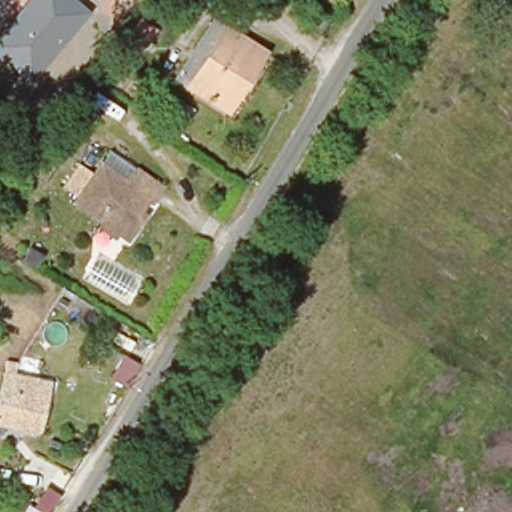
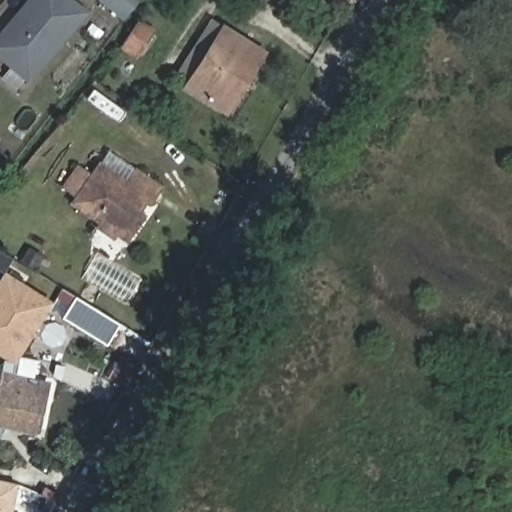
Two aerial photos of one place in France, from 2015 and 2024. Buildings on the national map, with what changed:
unchanged [(31,85),(0,58),(0,32),(28,0),(75,0),(91,12),(31,85)]
new [(137,0),(125,17),(104,2),(106,0),(137,0)]
unchanged [(268,49),(225,119),(188,96),(230,26),(268,49)]
unchanged [(130,186),(143,170),(164,186),(153,202),(149,199),(137,215),(144,220),(129,240),(76,201),(103,165),(130,186)]
new [(0,280),(4,273),(53,302),(14,360),(0,352),(0,280)]
new [(106,346),(61,318),(75,297),(120,324),(106,346)]
unchanged [(15,430),(27,382),(5,377),(4,362),(16,362),(15,373),(51,381),(41,435),(15,430)]
demolished [(0,392),(0,376),(5,377),(0,392)]
unchanged [(27,382),(15,430),(0,426),(0,392),(5,377),(27,382)]
new [(12,512),(0,512),(0,480),(17,483),(12,512)]

